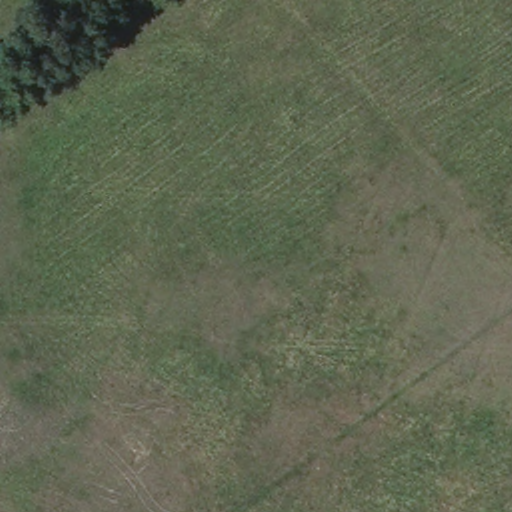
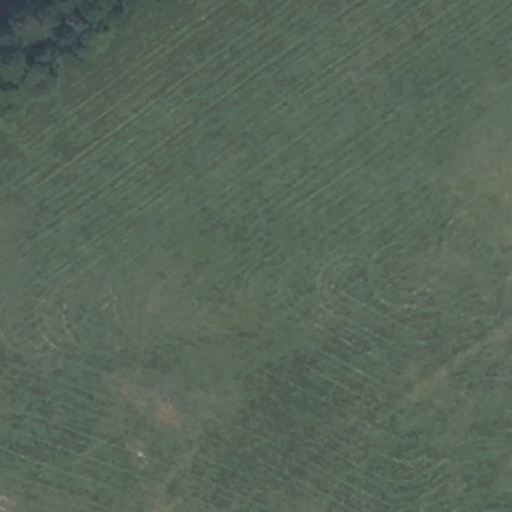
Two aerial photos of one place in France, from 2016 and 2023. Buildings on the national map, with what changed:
[]

